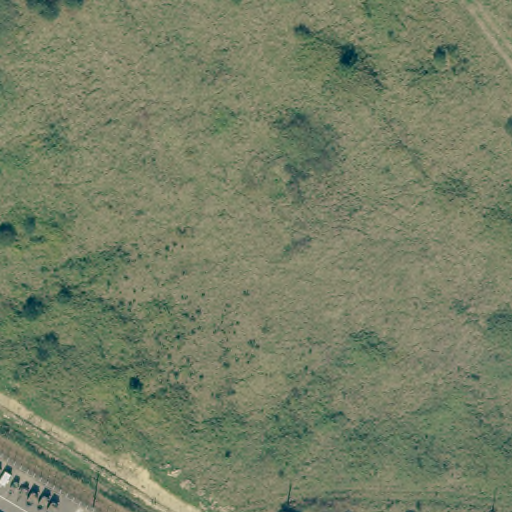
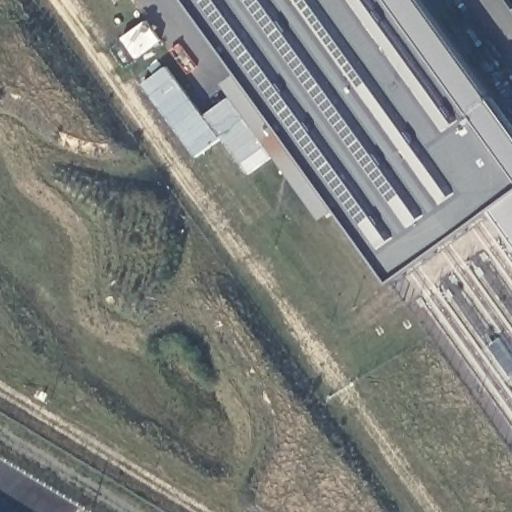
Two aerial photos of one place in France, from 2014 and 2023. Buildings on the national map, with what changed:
new [(512,238),(493,212),(395,283),(340,210),(322,224),(225,86),(243,76),(189,0),(423,0),(512,124),(512,238)]
new [(512,0),(512,5),(508,0),(512,0)]

